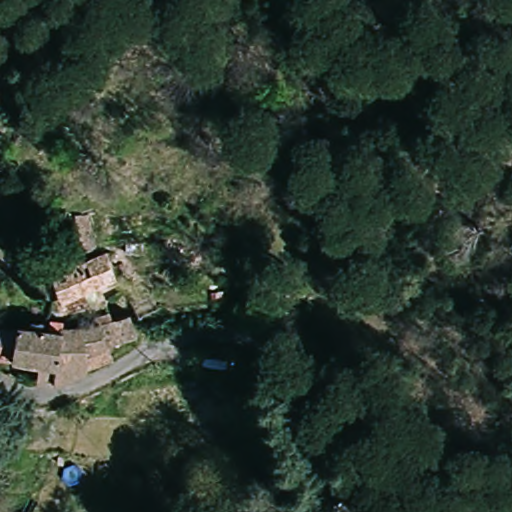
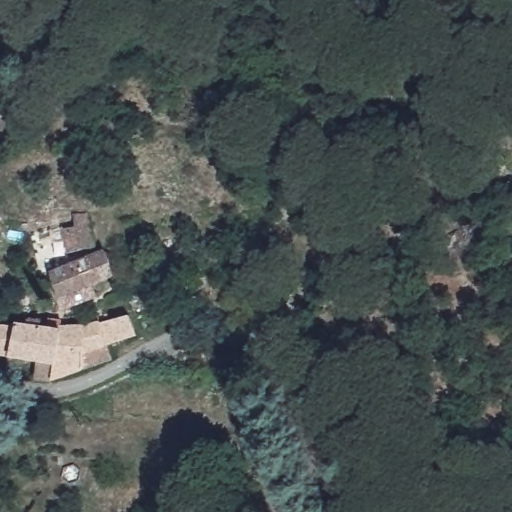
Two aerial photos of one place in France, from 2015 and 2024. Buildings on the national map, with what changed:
unchanged [(0,133),(0,109),(10,111),(5,135),(0,133)]
unchanged [(68,257),(63,223),(91,219),(98,249),(68,257)]
unchanged [(117,278),(61,303),(52,272),(108,249),(117,278)]
unchanged [(108,347),(110,364),(55,382),(37,381),(40,363),(12,359),(0,357),(0,325),(18,328),(18,322),(61,329),(61,323),(89,325),(131,315),(136,339),(108,347)]

